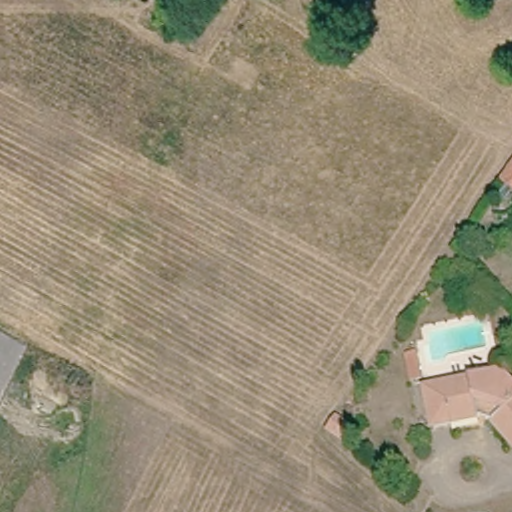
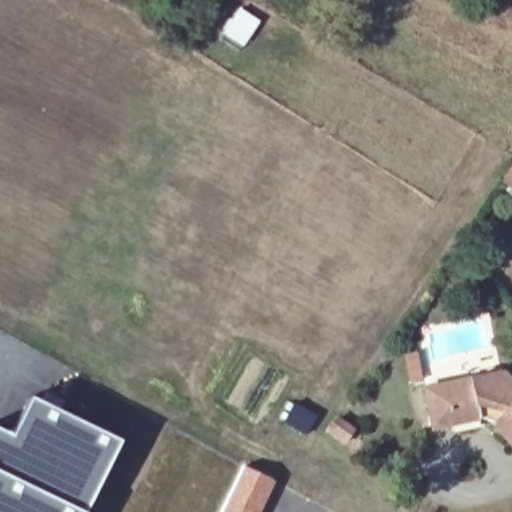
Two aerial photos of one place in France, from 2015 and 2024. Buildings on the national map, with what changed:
unchanged [(512,162),(512,187),(501,179),(512,162)]
unchanged [(422,351),(427,379),(416,381),(411,353),(422,351)]
unchanged [(486,419),(457,424),(437,428),(429,388),(507,371),(512,376),(512,440),(497,423),(486,419)]
new [(8,434),(27,396),(120,441),(85,512),(0,512),(0,430),(8,434)]
unchanged [(353,429),(343,443),(327,431),(337,418),(353,429)]
new [(244,467),(275,482),(260,512),(222,512),(244,467)]

